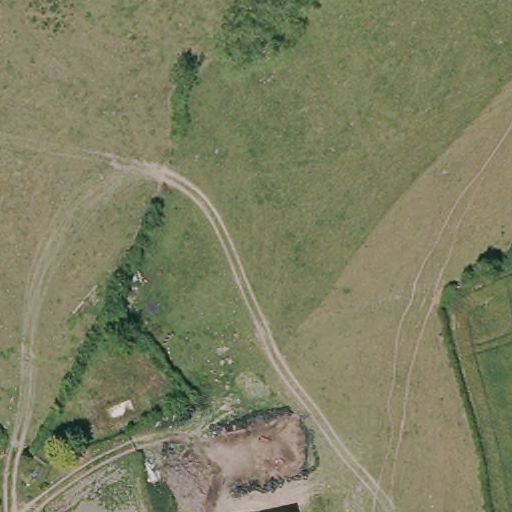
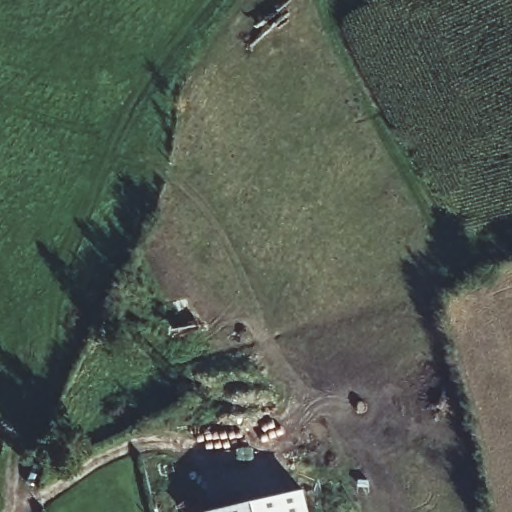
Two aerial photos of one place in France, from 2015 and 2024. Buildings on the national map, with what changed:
new [(311,512),(202,512),(305,488),(311,512)]

